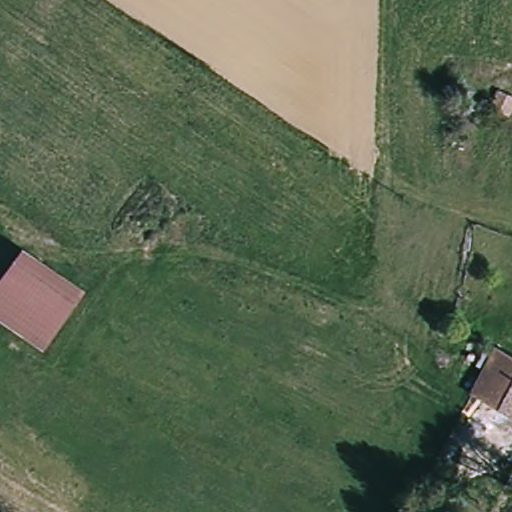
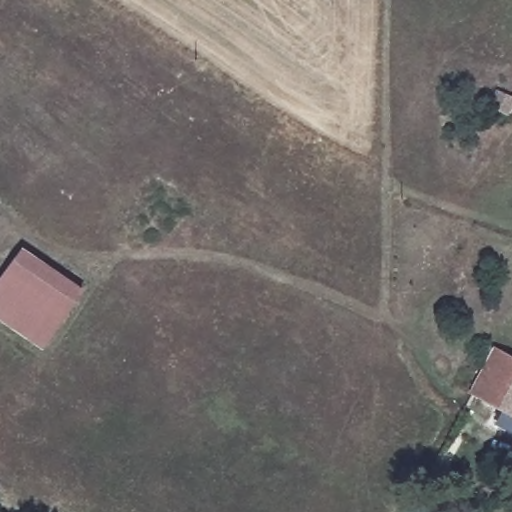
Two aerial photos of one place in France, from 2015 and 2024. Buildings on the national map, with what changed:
unchanged [(512,97),(512,102),(506,115),(489,107),(497,89),(512,97)]
unchanged [(43,346),(0,316),(0,281),(24,246),(84,289),(43,346)]
unchanged [(470,393),(493,348),(512,358),(512,415),(470,393)]

